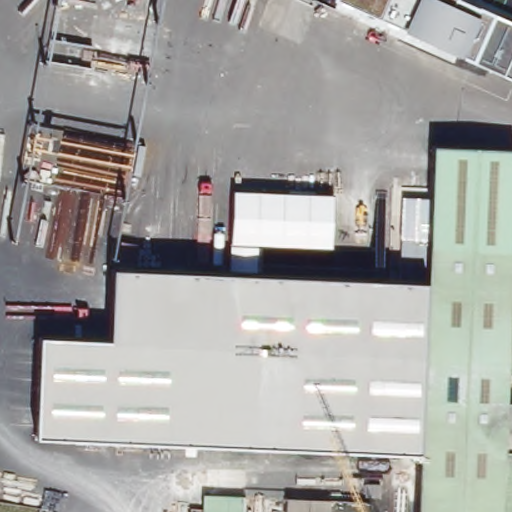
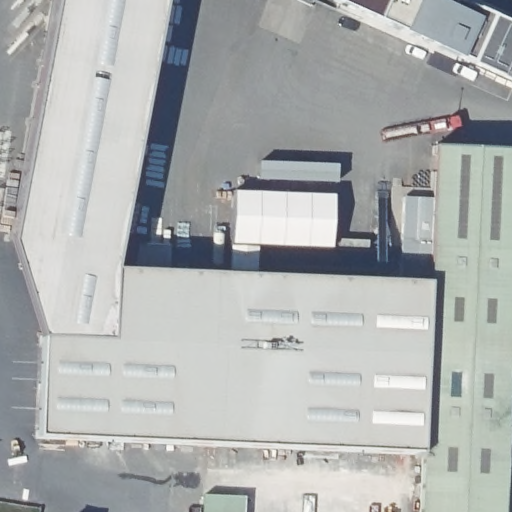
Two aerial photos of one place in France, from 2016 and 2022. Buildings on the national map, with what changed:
new [(53,0),(163,0),(114,269),(110,341),(41,337),(9,240),(53,0)]
unchanged [(461,58),(403,31),(334,0),(460,0),(492,14),(471,62),(461,58)]
unchanged [(492,14),(512,23),(512,80),(471,62),(492,14)]
unchanged [(427,251),(431,147),(512,151),(512,215),(510,254),(505,254),(427,251)]
unchanged [(229,274),(231,245),(233,192),(333,197),(331,250),(257,246),(257,276),(229,274)]
unchanged [(427,251),(426,283),(400,282),(402,239),(405,199),(429,197),(427,251)]
unchanged [(419,459),(426,283),(427,251),(505,254),(512,254),(512,512),(417,512),(419,459)]
unchanged [(419,459),(36,437),(41,337),(110,341),(114,269),(426,283),(419,459)]
unchanged [(245,502),(244,512),(202,512),(202,500),(245,502)]
demolished [(355,505),(355,512),(308,512),(308,502),(355,505)]

